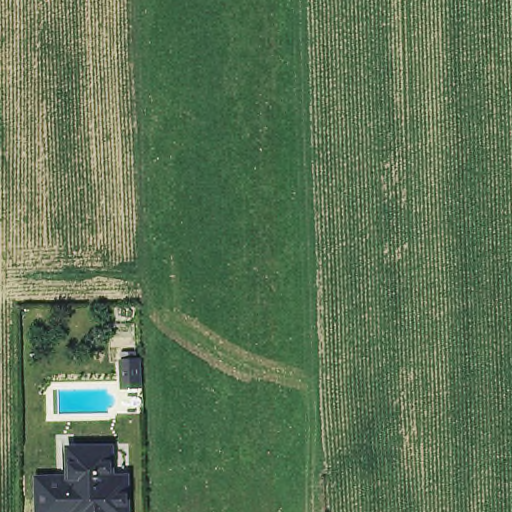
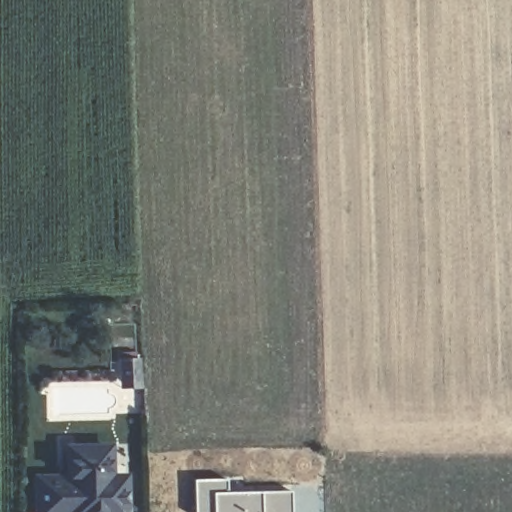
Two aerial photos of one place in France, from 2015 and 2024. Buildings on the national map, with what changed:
unchanged [(116,478),(116,512),(34,512),(34,493),(65,494),(65,468),(103,468),(103,478),(116,478)]
new [(227,478),(227,491),(292,490),(292,512),(193,512),(192,478),(227,478)]

